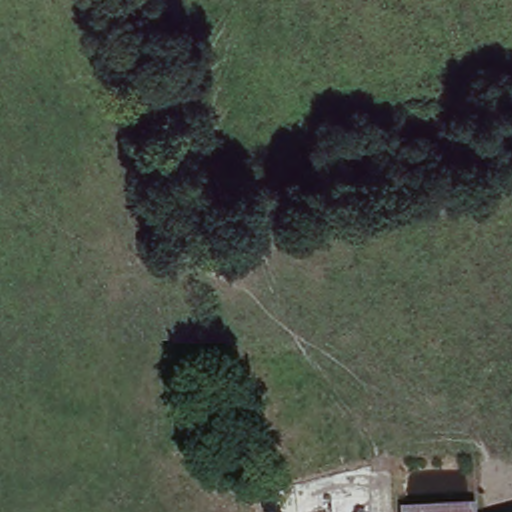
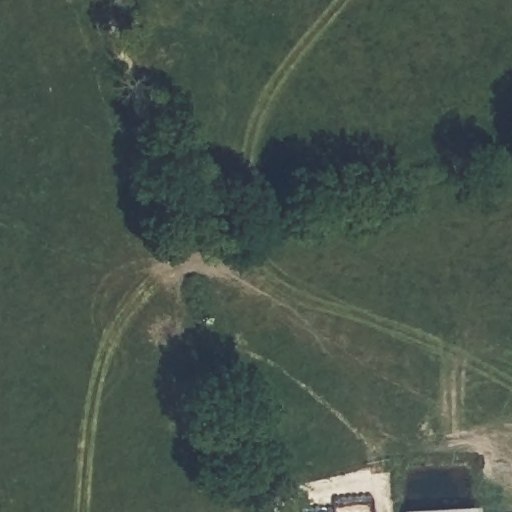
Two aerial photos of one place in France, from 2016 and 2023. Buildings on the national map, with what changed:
unchanged [(399,511),(475,509),(476,512),(399,512),(399,511)]

